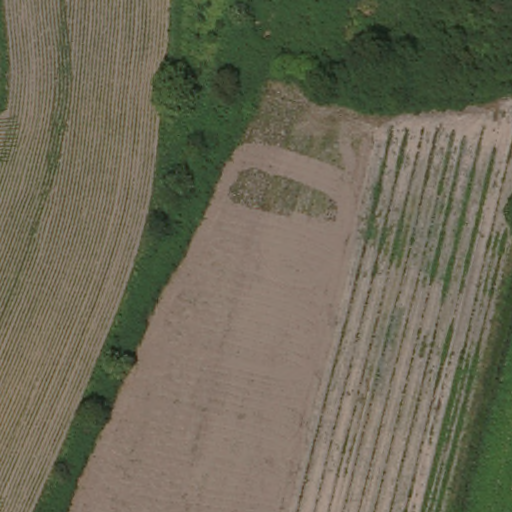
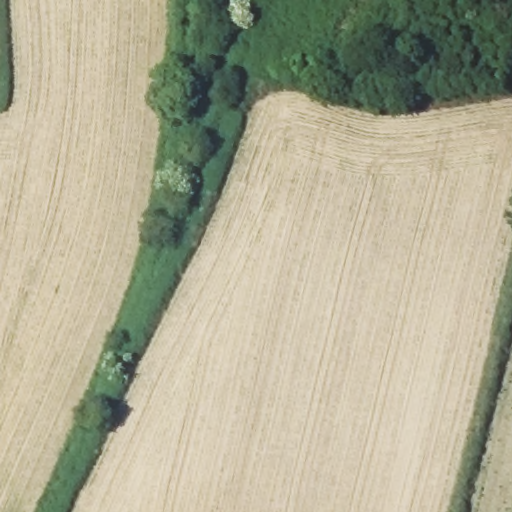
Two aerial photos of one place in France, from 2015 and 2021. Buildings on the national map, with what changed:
[]

